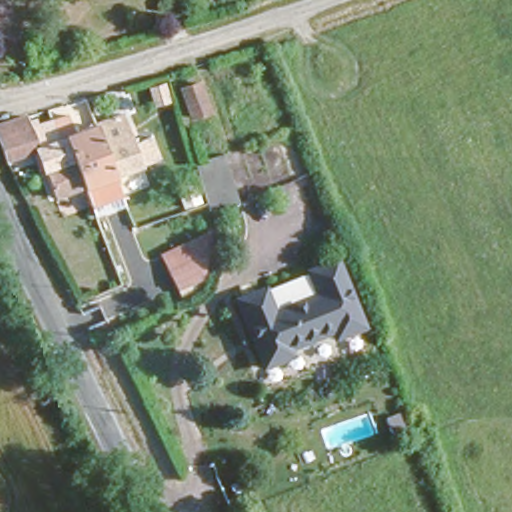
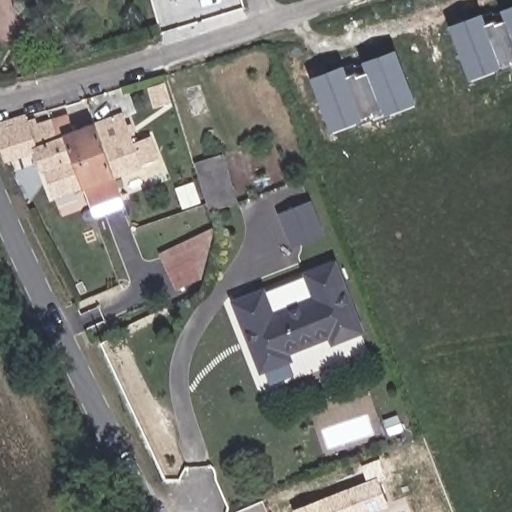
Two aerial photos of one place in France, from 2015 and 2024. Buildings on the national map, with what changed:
new [(171,1),(171,0),(174,0),(171,1)]
new [(510,66),(496,72),(495,70),(470,80),(449,25),(482,12),(486,24),(493,21),(494,23),(504,20),(500,10),(512,5),(512,69),(510,66)]
new [(389,113),(390,116),(374,122),(372,119),(358,125),(357,123),(331,132),(311,77),(344,64),(348,76),(356,73),(357,75),(365,72),(362,61),(396,49),(416,104),(389,113)]
unchanged [(171,93),(197,85),(208,120),(183,128),(171,93)]
unchanged [(137,137),(152,133),(159,156),(116,172),(96,122),(128,111),(137,137)]
unchanged [(66,113),(71,131),(96,122),(116,172),(123,190),(91,203),(85,185),(68,140),(58,142),(50,118),(66,113)]
unchanged [(0,121),(24,114),(26,121),(33,118),(34,123),(50,118),(58,142),(68,140),(85,185),(53,196),(34,147),(4,157),(0,145),(0,121)]
unchanged [(194,163),(222,154),(238,205),(210,212),(207,205),(194,163)]
unchanged [(177,291),(168,274),(193,260),(205,278),(177,291)]
unchanged [(260,368),(232,299),(332,260),(360,332),(331,342),(326,331),(285,346),(289,358),(260,368)]
new [(379,478),(388,506),(373,512),(293,512),(293,510),(379,478)]

